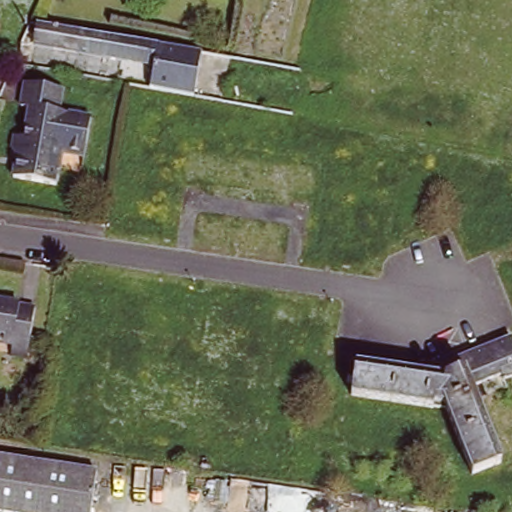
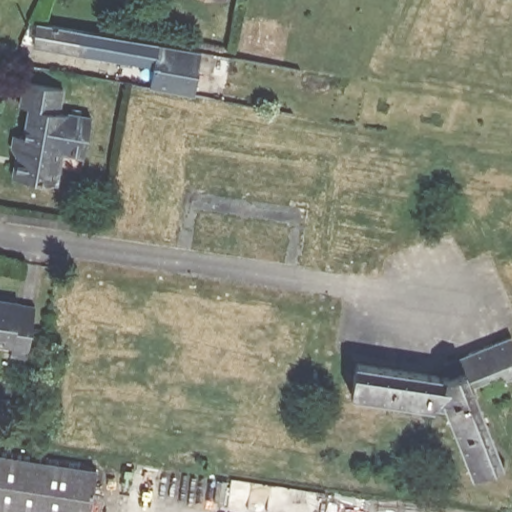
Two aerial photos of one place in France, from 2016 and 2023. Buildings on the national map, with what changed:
unchanged [(159,66),(37,44),(40,21),(162,42),(159,66)]
unchanged [(159,66),(162,42),(201,49),(192,97),(147,88),(152,64),(159,66)]
unchanged [(15,135),(22,136),(26,136),(31,106),(23,105),(27,81),(59,87),(65,89),(61,111),(94,118),(87,155),(69,151),(63,185),(15,177),(20,146),(13,145),(15,135)]
unchanged [(25,360),(9,357),(11,346),(0,344),(0,303),(34,309),(25,360)]
unchanged [(511,380),(508,373),(481,384),(509,461),(479,472),(455,406),(439,403),(438,408),(361,394),(366,361),(445,375),(445,378),(451,379),(461,374),(456,362),(477,353),(512,339),(512,379),(511,380)]
unchanged [(0,509),(0,455),(100,470),(93,512),(18,512),(0,509)]

